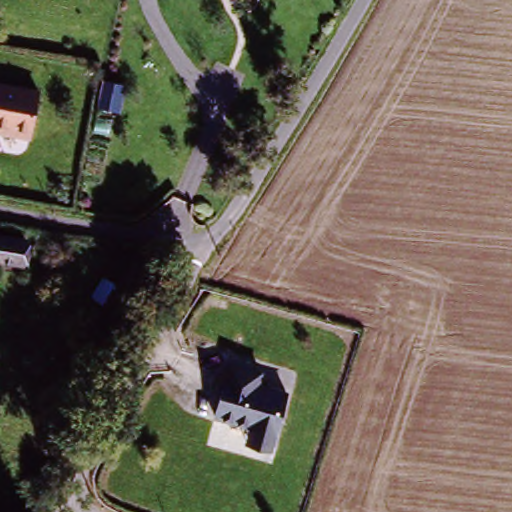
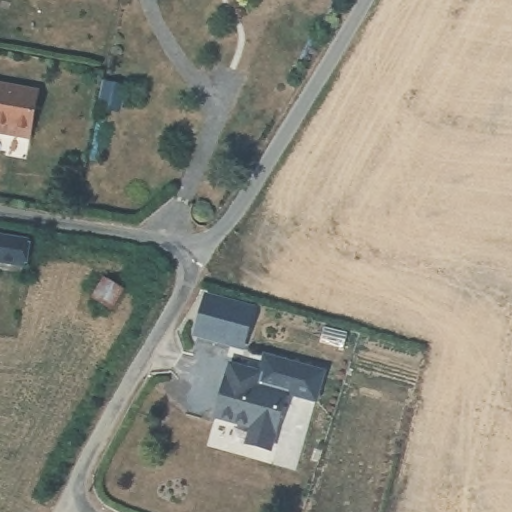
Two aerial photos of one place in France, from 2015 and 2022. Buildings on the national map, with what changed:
unchanged [(37,93),(27,137),(3,131),(4,124),(0,124),(0,85),(37,93)]
unchanged [(211,157),(224,165),(215,179),(202,170),(211,157)]
unchanged [(16,249),(12,270),(0,268),(0,246),(16,249)]
unchanged [(114,268),(131,282),(116,301),(98,289),(114,268)]
new [(207,294),(254,306),(243,343),(192,335),(207,294)]
unchanged [(275,446),(251,439),(254,427),(217,417),(231,364),(260,370),(263,352),(325,369),(315,400),(289,392),(275,446)]

